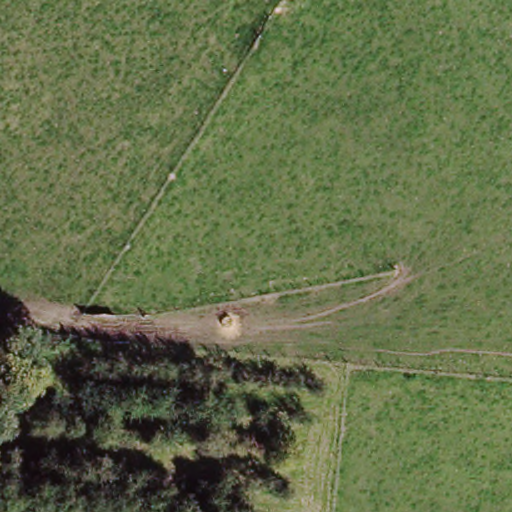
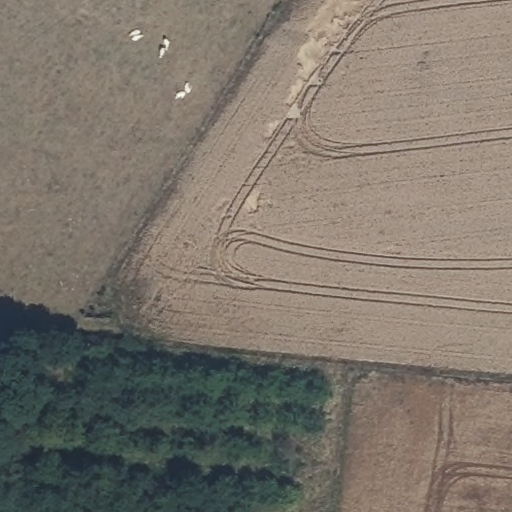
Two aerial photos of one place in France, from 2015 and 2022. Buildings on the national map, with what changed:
[]

